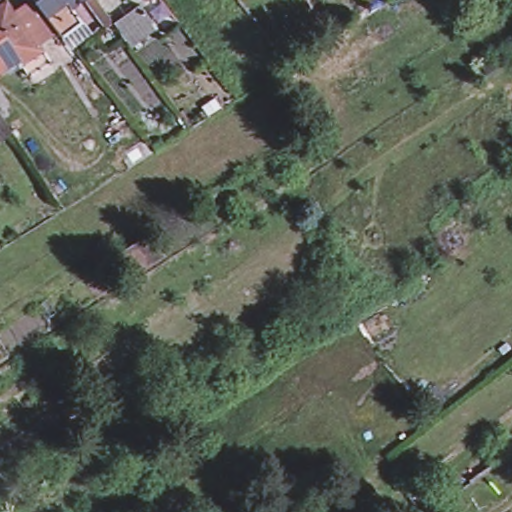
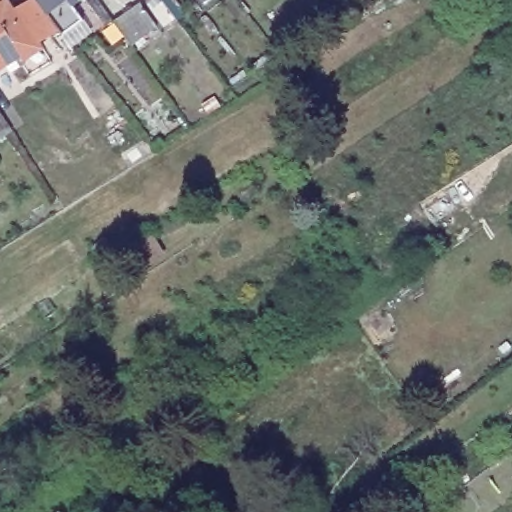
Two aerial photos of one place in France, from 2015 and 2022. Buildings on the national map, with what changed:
unchanged [(44,0),(74,0),(75,2),(56,16),(44,0)]
unchanged [(96,7),(91,0),(101,0),(102,2),(96,7)]
unchanged [(111,0),(142,0),(148,9),(136,16),(123,26),(107,3),(111,0)]
unchanged [(39,53),(19,66),(15,60),(0,70),(0,10),(4,8),(22,37),(27,34),(39,53)]
unchanged [(12,146),(0,128),(0,120),(9,114),(25,138),(12,146)]

